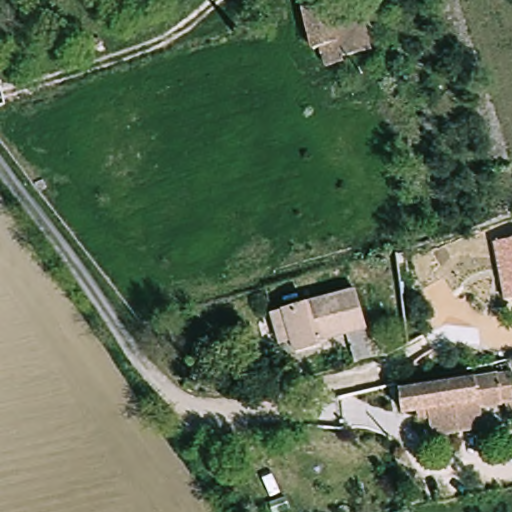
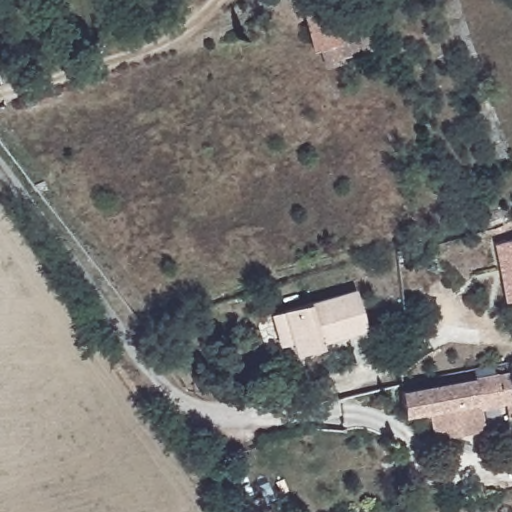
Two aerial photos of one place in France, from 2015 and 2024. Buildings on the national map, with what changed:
unchanged [(327,2),(333,29),(364,21),(370,50),(342,58),(343,62),(325,68),(320,48),(313,50),(303,9),(327,2)]
unchanged [(502,245),(512,243),(512,293),(502,245)]
unchanged [(318,342),(320,347),(295,354),(292,342),(280,345),(270,314),(283,310),(355,290),(365,329),(368,340),(371,339),(375,357),(355,364),(347,334),(318,342)]
unchanged [(417,407),(402,409),(399,387),(510,369),(512,381),(512,414),(508,415),(505,399),(479,404),(482,424),(433,432),(430,414),(419,417),(417,407)]

